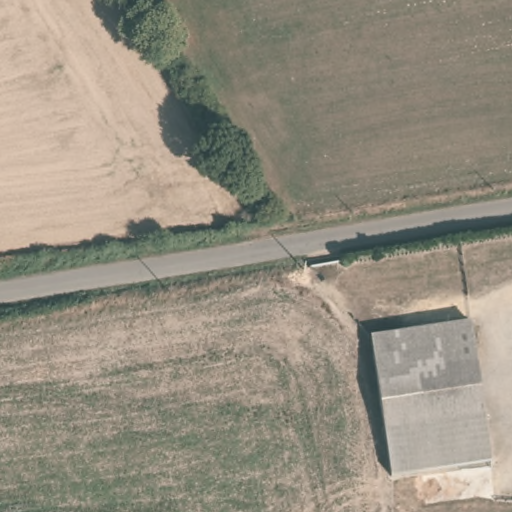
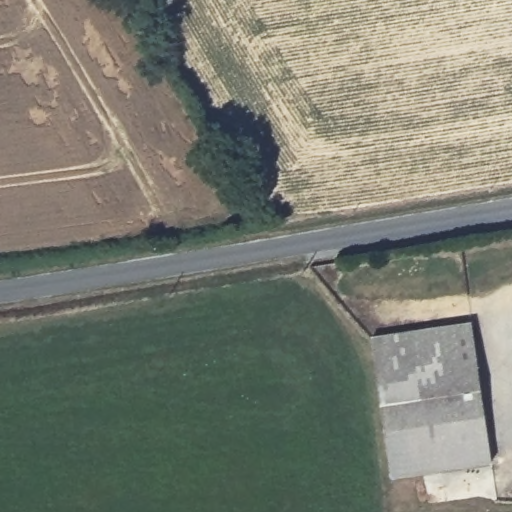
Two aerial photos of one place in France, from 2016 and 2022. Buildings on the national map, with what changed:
unchanged [(366,343),(467,328),(480,414),(377,426),(366,343)]
unchanged [(488,469),(386,482),(377,426),(480,414),(488,469)]

